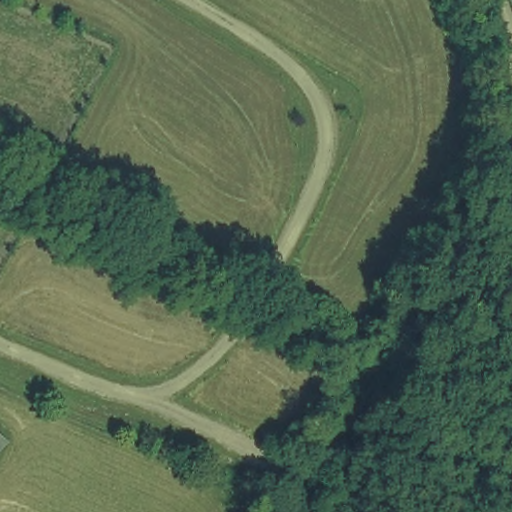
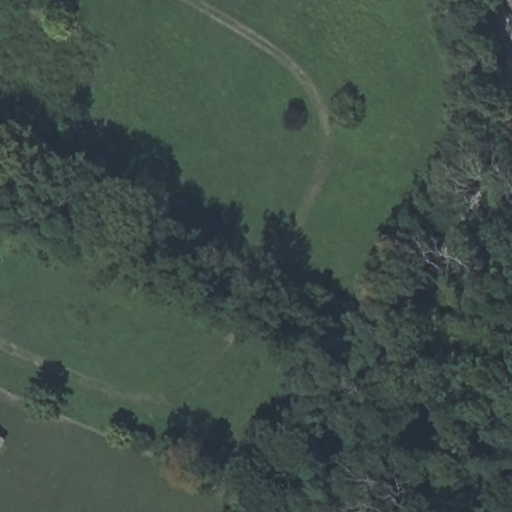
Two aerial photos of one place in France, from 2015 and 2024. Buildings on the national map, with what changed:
unchanged [(0,449),(0,437),(6,443),(0,449)]

